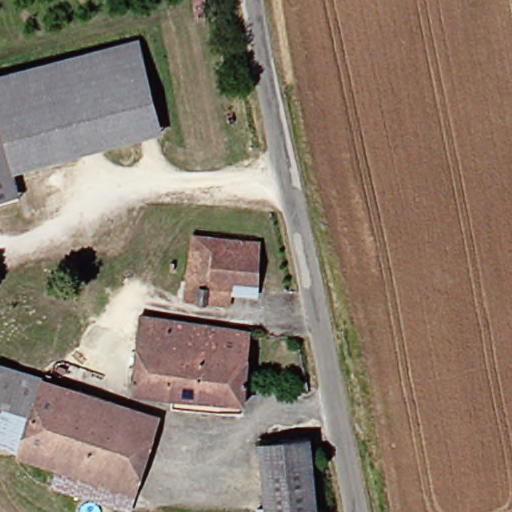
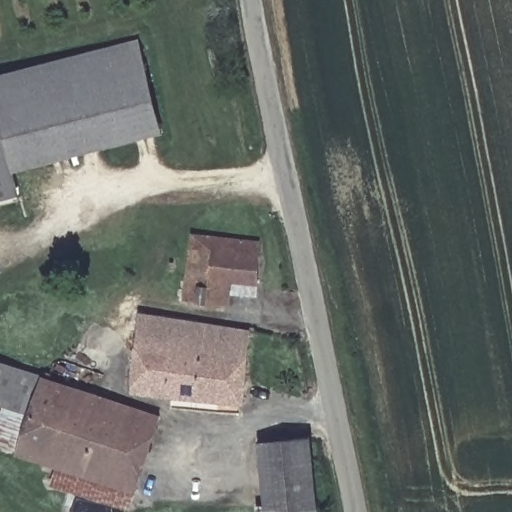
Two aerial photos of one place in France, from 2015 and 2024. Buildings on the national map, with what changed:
unchanged [(169,132),(25,169),(5,81),(147,46),(169,132)]
unchanged [(0,206),(0,83),(5,81),(25,169),(32,199),(0,206)]
unchanged [(195,298),(206,233),(270,243),(270,257),(267,282),(244,279),(240,303),(195,298)]
unchanged [(265,337),(257,409),(143,397),(155,319),(265,337)]
unchanged [(15,454),(0,449),(0,443),(13,407),(0,401),(0,385),(7,367),(39,377),(15,454)]
unchanged [(105,481),(15,454),(39,377),(104,397),(129,404),(105,481)]
unchanged [(132,489),(105,481),(129,404),(156,414),(132,489)]
unchanged [(270,448),(319,444),(325,512),(277,512),(270,448)]

